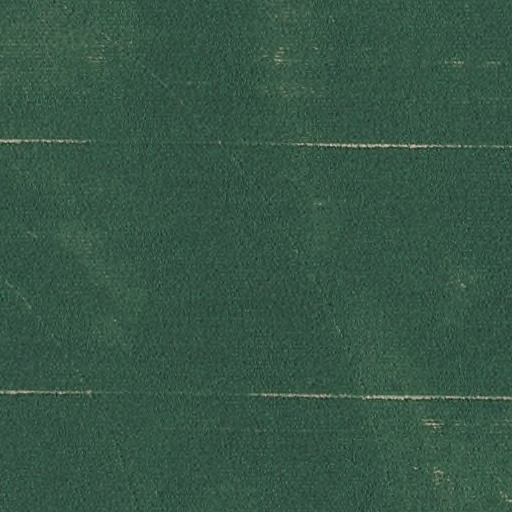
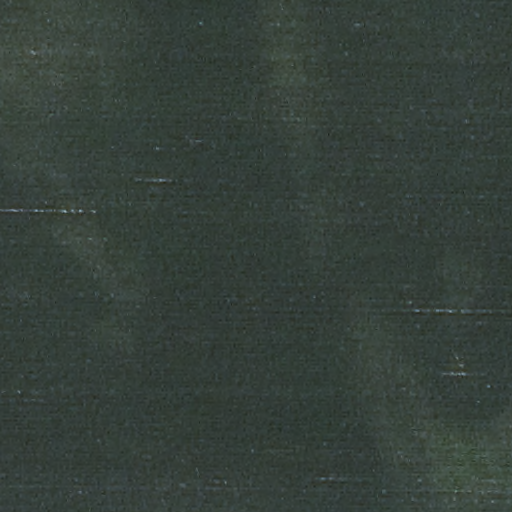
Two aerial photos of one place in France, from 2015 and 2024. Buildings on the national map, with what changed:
[]

